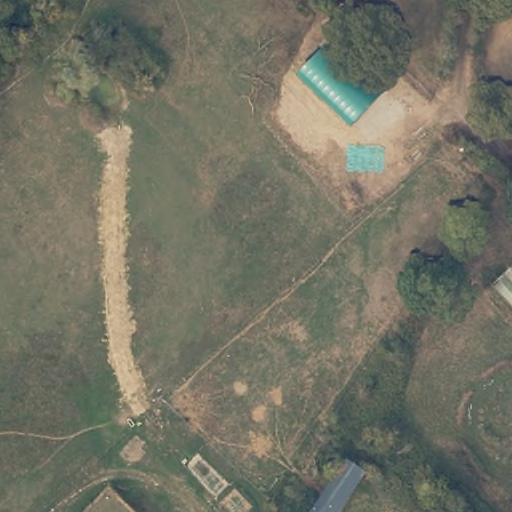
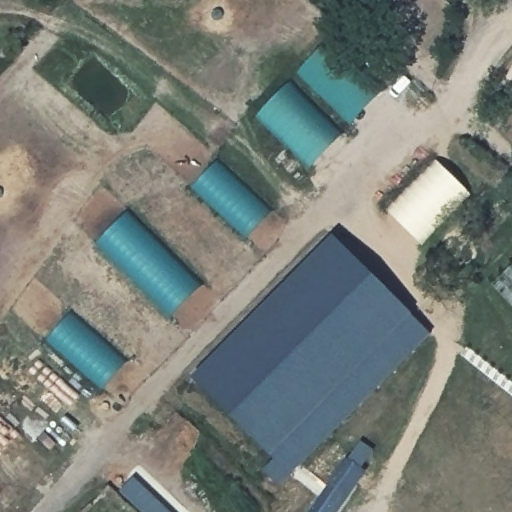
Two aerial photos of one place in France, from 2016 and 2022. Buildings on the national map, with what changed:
new [(328,41),(380,93),(351,122),(298,71),(328,41)]
new [(288,84),(340,136),(311,166),(258,115),(288,84)]
new [(437,160),(469,191),(419,241),(387,210),(437,160)]
new [(334,235),(429,332),(279,485),(263,470),(274,457),(190,375),(334,235)]
unchanged [(367,467),(337,512),(301,512),(341,451),(367,467)]
new [(173,512),(144,512),(121,490),(135,475),(173,512)]

